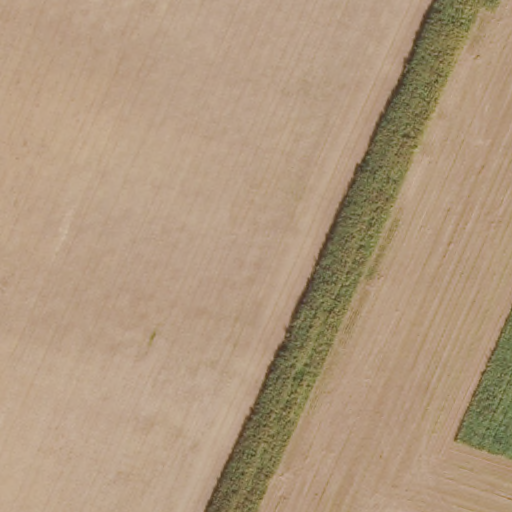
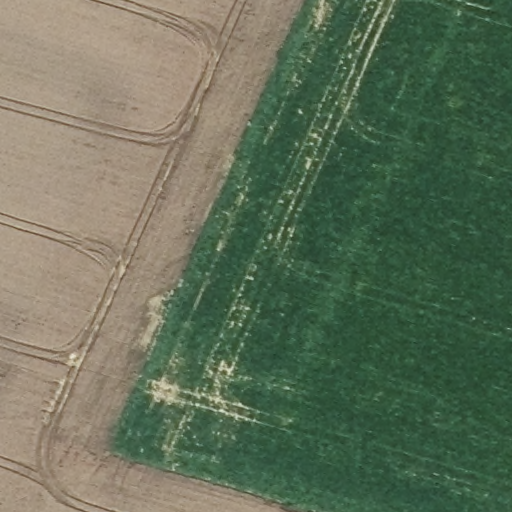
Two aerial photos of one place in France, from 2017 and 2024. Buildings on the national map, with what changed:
[]

